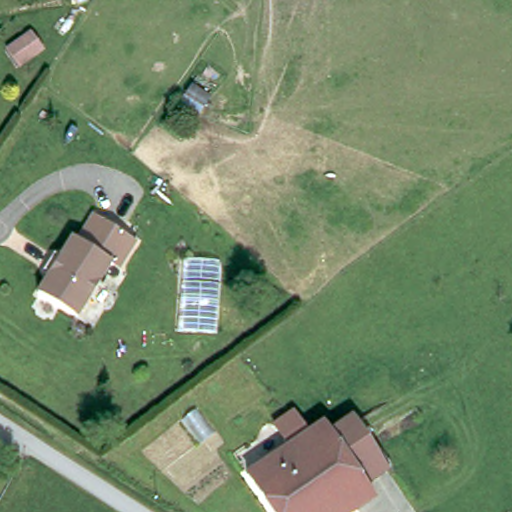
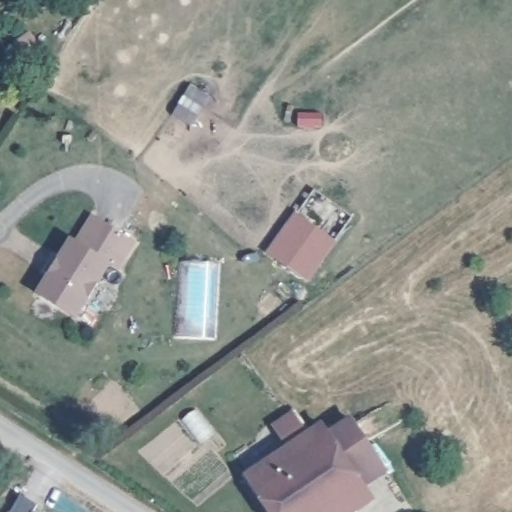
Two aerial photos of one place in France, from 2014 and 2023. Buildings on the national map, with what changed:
unchanged [(0,68),(5,65),(25,51),(35,65),(15,80),(10,83),(0,68)]
new [(299,219),(332,244),(309,280),(272,252),(299,219)]
unchanged [(127,273),(117,267),(84,322),(50,303),(64,282),(55,277),(66,260),(74,265),(87,244),(92,247),(107,220),(145,243),(127,273)]
unchanged [(292,451),(277,428),(295,417),(310,438),(327,427),(334,437),(357,422),(390,472),(367,488),(377,502),(363,512),(273,512),(250,479),(292,451)]
new [(37,505),(34,512),(11,512),(20,496),(37,505)]

